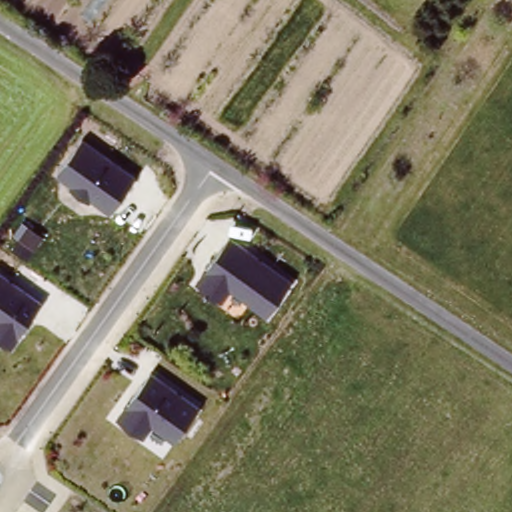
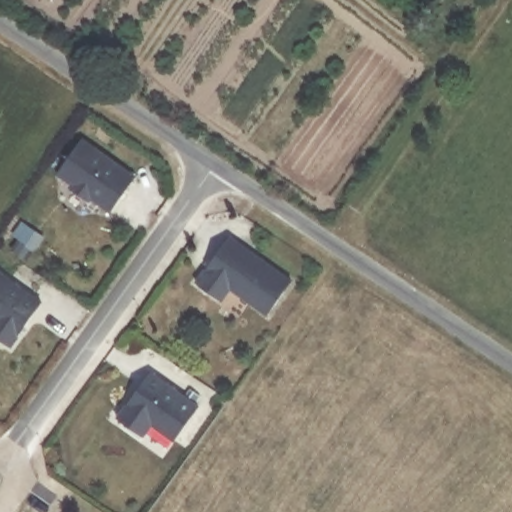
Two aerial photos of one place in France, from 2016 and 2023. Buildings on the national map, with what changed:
unchanged [(56,175),(81,140),(135,178),(110,212),(56,175)]
unchanged [(292,278),(269,315),(233,288),(223,300),(195,277),(228,230),(292,278)]
unchanged [(43,301),(14,346),(0,335),(0,269),(43,301)]
unchanged [(199,402),(175,438),(152,422),(143,436),(115,416),(150,368),(199,402)]

